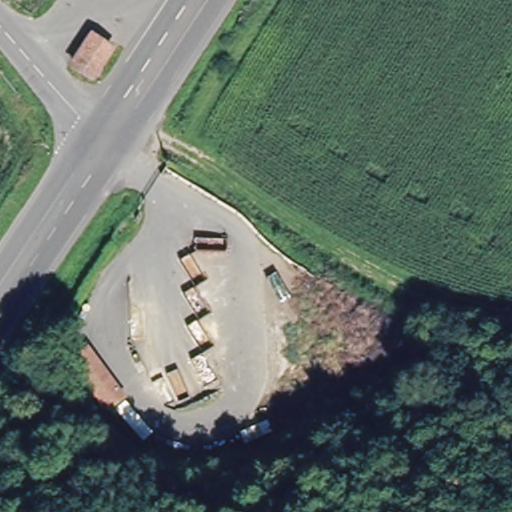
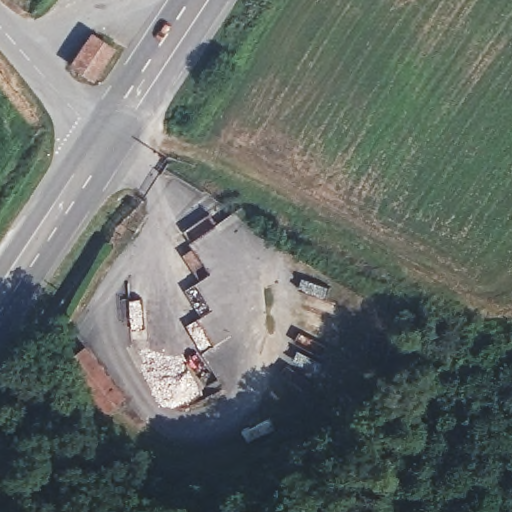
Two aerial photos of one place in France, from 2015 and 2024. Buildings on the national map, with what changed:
unchanged [(77,62),(95,36),(112,47),(95,76),(77,62)]
unchanged [(67,358),(83,347),(119,395),(104,407),(67,358)]

